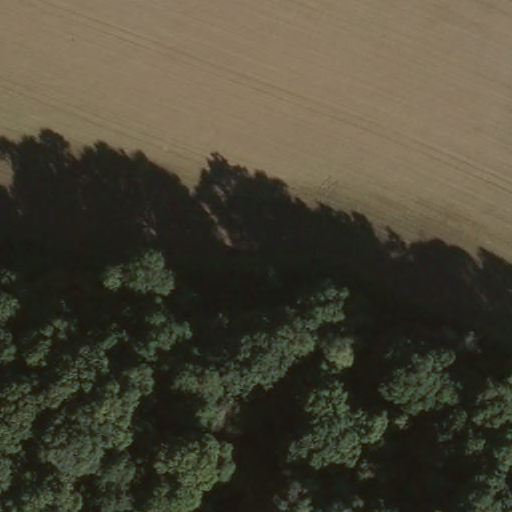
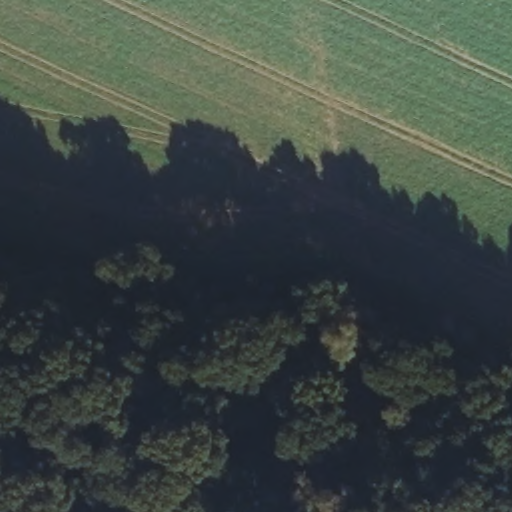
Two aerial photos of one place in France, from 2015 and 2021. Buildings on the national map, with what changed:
[]

